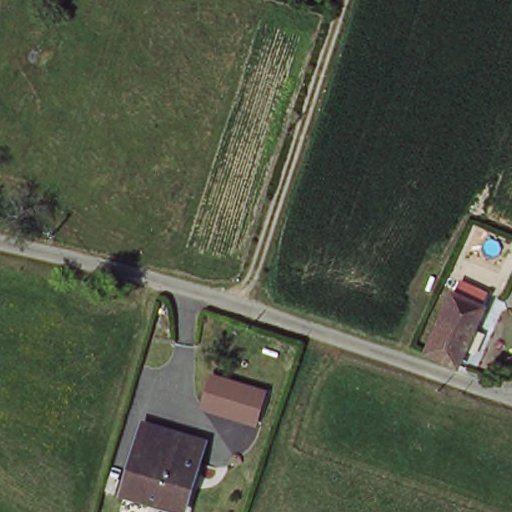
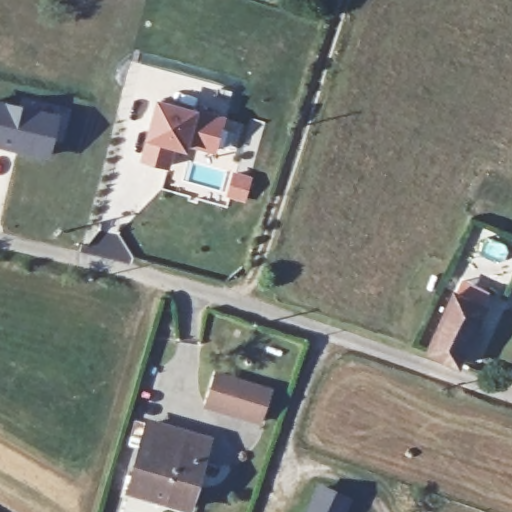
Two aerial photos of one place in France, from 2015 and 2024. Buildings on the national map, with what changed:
new [(145,139),(157,97),(200,107),(227,117),(217,152),(190,146),(189,150),(174,146),(170,170),(140,161),(145,139)]
new [(0,107),(55,121),(46,157),(0,146),(0,107)]
unchanged [(461,368),(426,356),(450,295),(453,296),(459,283),(484,294),(478,307),(482,308),(461,368)]
new [(256,421),(226,411),(206,402),(217,372),(238,380),(268,391),(256,421)]
unchanged [(204,441),(181,508),(126,488),(150,421),(204,441)]
new [(351,501),(346,512),(304,512),(317,486),(351,501)]

